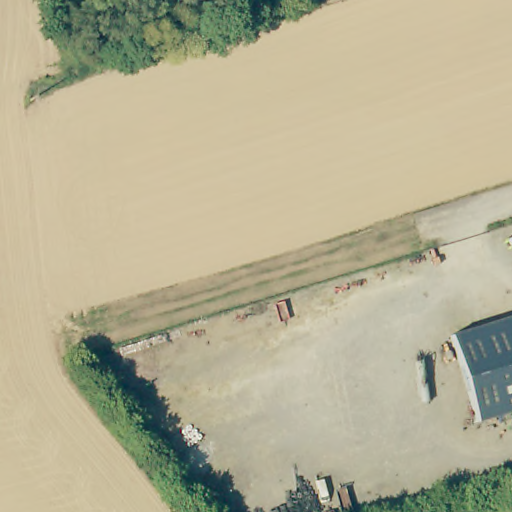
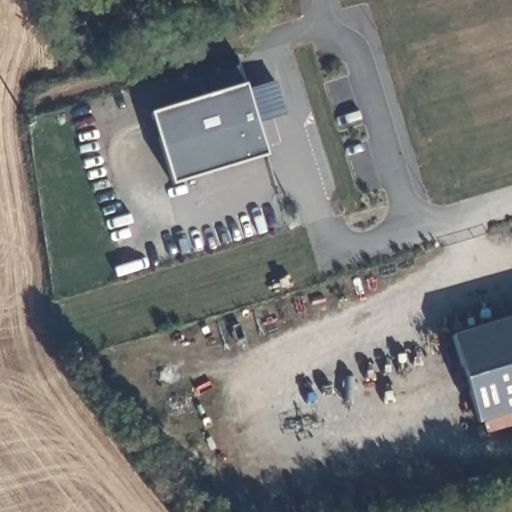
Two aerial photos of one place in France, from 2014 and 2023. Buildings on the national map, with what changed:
new [(255,122),(265,155),(170,184),(149,112),(208,95),(201,76),(237,65),(244,82),(248,91),(274,80),(284,115),(255,122)]
unchanged [(512,320),(512,415),(484,423),(457,337),(512,320)]

